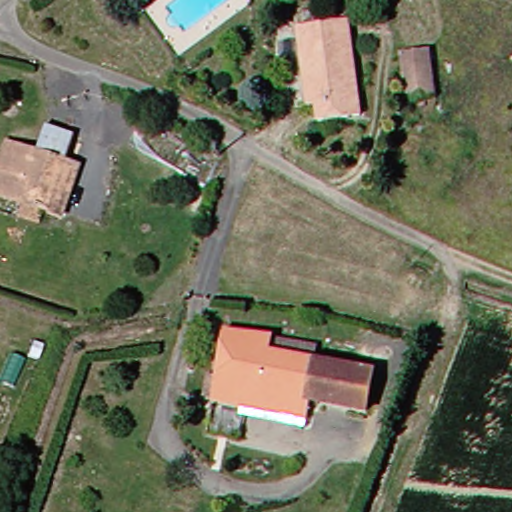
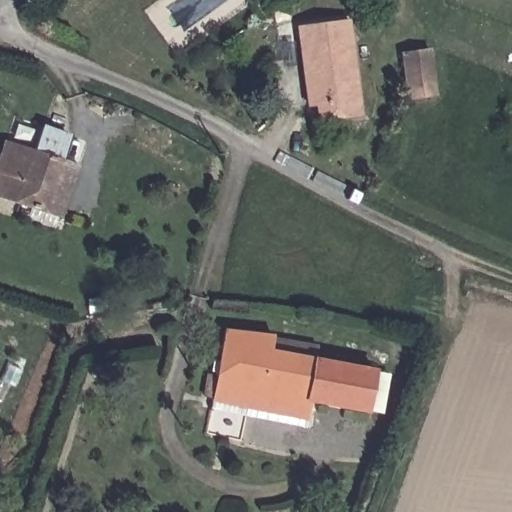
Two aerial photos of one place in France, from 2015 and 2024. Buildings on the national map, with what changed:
unchanged [(345,14),(366,112),(322,121),(314,82),(303,85),(296,50),(291,25),(345,14)]
unchanged [(428,47),(439,95),(412,101),(401,52),(428,47)]
unchanged [(0,194),(0,150),(3,140),(30,148),(38,126),(66,136),(60,157),(44,210),(0,194)]
unchanged [(244,403),(244,401),(216,396),(230,325),(271,332),(326,343),(323,355),(309,416),(244,403)]
unchanged [(370,405),(318,396),(326,354),(379,363),(370,405)]

